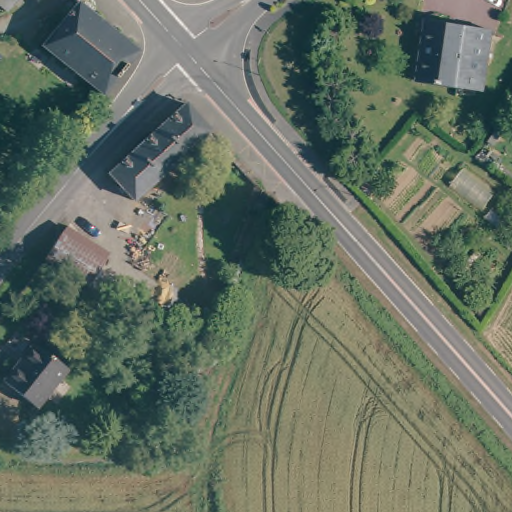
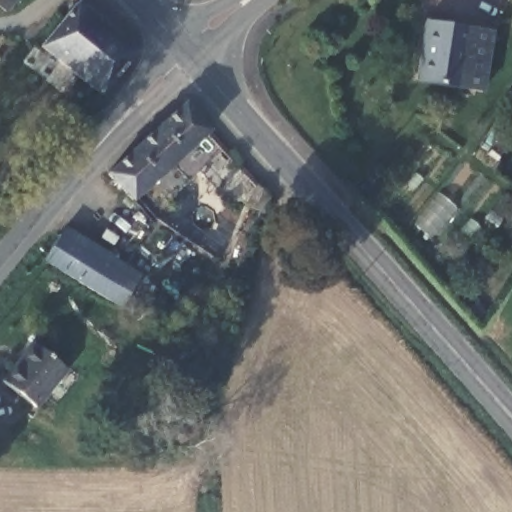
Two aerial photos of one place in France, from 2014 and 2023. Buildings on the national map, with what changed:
unchanged [(0,4),(0,0),(15,0),(8,10),(0,4)]
unchanged [(75,0),(79,0),(97,12),(137,48),(101,91),(42,40),(75,0)]
unchanged [(476,88),(412,76),(421,18),(487,29),(476,88)]
unchanged [(110,174),(189,98),(214,126),(133,202),(110,174)]
unchanged [(92,284),(47,258),(71,223),(115,250),(92,284)]
unchanged [(39,340),(70,367),(37,406),(5,381),(39,340)]

